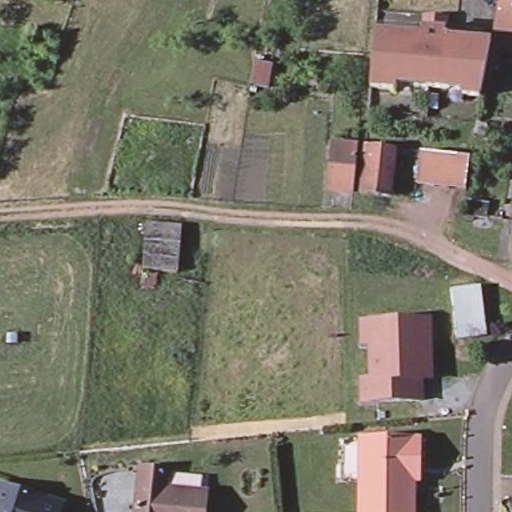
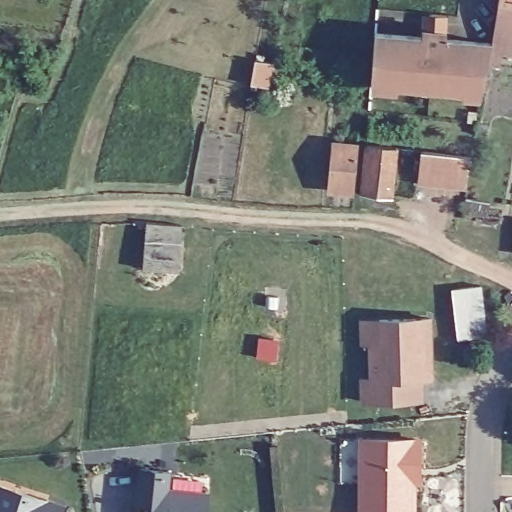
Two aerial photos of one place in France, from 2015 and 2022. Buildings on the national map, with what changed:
unchanged [(512,0),(512,52),(502,51),(500,64),(488,61),(490,42),(496,0),(510,0),(512,0)]
unchanged [(409,84),(397,84),(396,89),(370,87),(373,34),(420,36),(420,30),(422,14),(445,16),(444,31),(443,39),(490,42),(488,61),(481,96),(462,95),(462,88),(449,87),(409,84)]
unchanged [(277,109),(250,107),(252,85),(250,85),(252,72),(266,75),(265,86),(279,88),(277,109)]
unchanged [(487,125),(485,134),(474,132),(476,124),(487,125)]
unchanged [(357,150),(353,195),(331,193),(335,148),(357,150)]
unchanged [(395,152),(391,200),(361,196),(365,150),(395,152)]
unchanged [(432,182),(417,180),(420,150),(423,151),(436,152),(452,155),(470,157),(465,186),(448,184),(432,182)]
unchanged [(487,205),(485,217),(462,215),(463,201),(487,205)]
unchanged [(181,225),(177,271),(142,270),(145,222),(181,225)]
unchanged [(457,338),(451,289),(480,285),(487,335),(457,338)]
unchanged [(423,378),(420,378),(421,400),(362,400),(361,377),(370,377),(370,343),(362,343),(362,319),(379,319),(430,318),(430,368),(430,377),(423,378)]
unchanged [(419,440),(419,466),(419,478),(412,478),(412,512),(362,512),(362,440),(419,440)]
unchanged [(167,490),(207,494),(205,512),(136,512),(140,469),(169,471),(167,490)]
unchanged [(15,490),(62,506),(60,512),(0,512),(0,502),(10,505),(15,490)]

